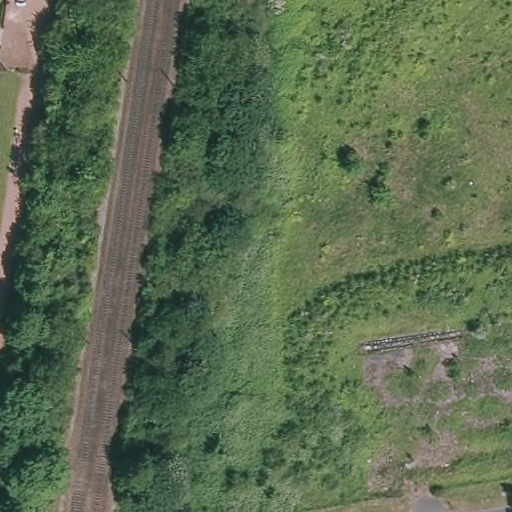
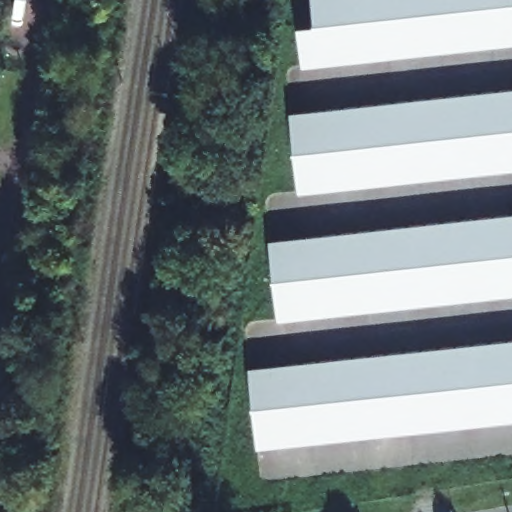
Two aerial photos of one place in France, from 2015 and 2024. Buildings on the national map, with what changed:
new [(309,0),(512,0),(512,46),(302,67),(299,36),(314,32),(309,0)]
new [(512,169),(299,190),(294,120),(512,93),(512,169)]
new [(512,294),(276,318),(271,248),(512,223),(512,294)]
new [(512,423),(258,452),(251,377),(512,345),(512,423)]

